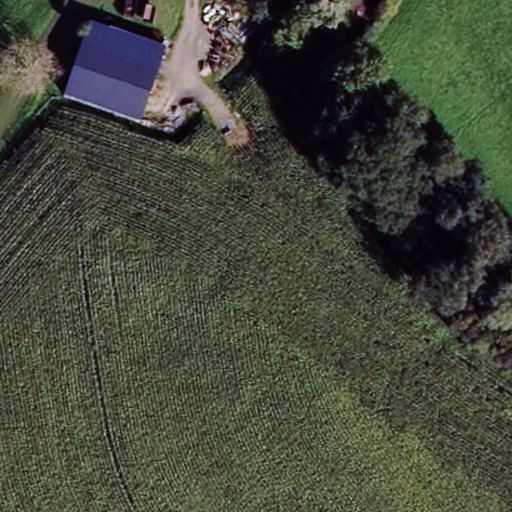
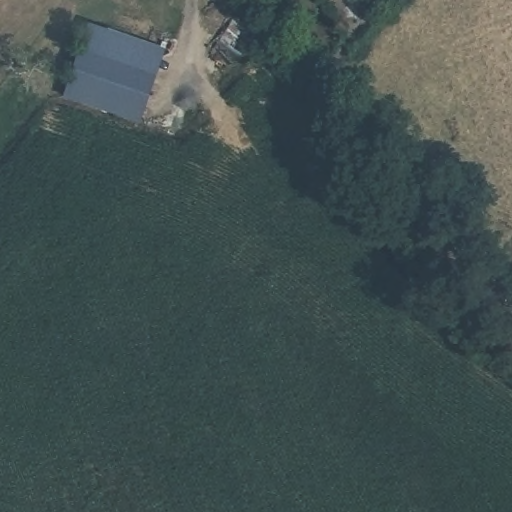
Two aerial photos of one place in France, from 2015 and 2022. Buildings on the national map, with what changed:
unchanged [(82,22),(165,48),(153,84),(69,55),(82,22)]
unchanged [(69,55),(153,84),(145,111),(59,86),(69,55)]

